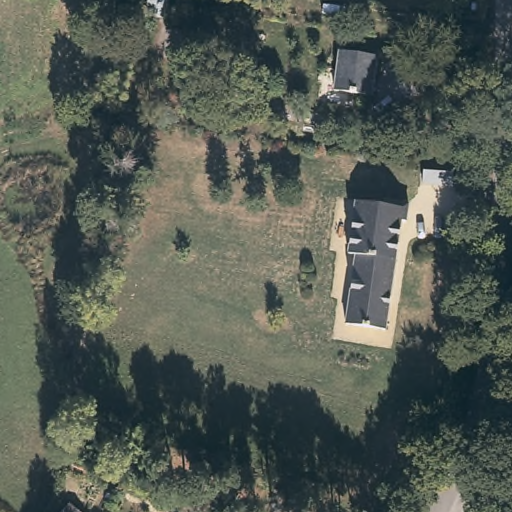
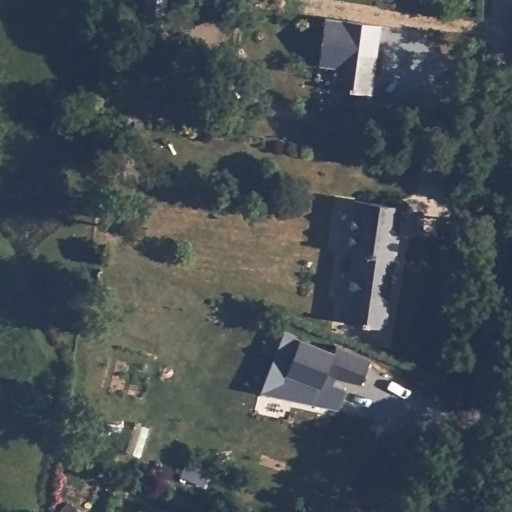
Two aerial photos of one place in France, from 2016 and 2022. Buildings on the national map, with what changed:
unchanged [(369,53),(368,77),(364,77),(364,96),(334,92),(339,50),(369,53)]
unchanged [(456,161),(454,185),(422,181),(424,157),(456,161)]
unchanged [(377,201),(378,199),(402,202),(399,224),(393,223),(379,333),(339,327),(348,252),(343,252),(349,198),(377,201)]
new [(259,390),(283,331),(300,337),(334,352),(337,345),(371,358),(361,384),(333,378),(331,384),(346,390),(338,408),(259,390)]

